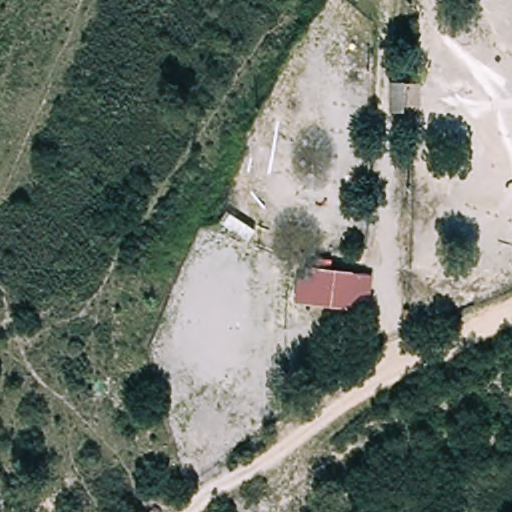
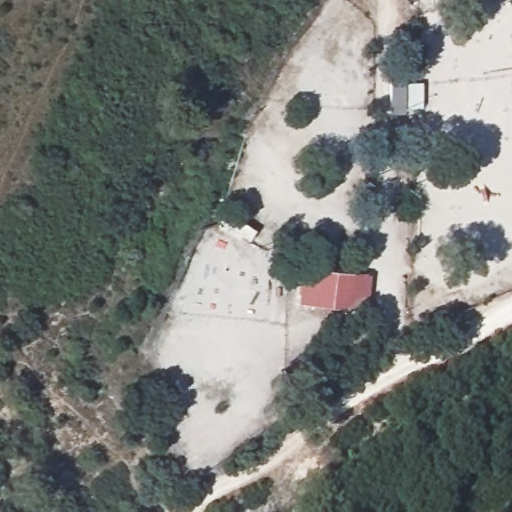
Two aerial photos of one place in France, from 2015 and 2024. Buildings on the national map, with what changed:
unchanged [(405,104),(404,130),(389,129),(390,104),(405,104)]
unchanged [(300,309),(302,265),(370,271),(369,304),(300,309)]

